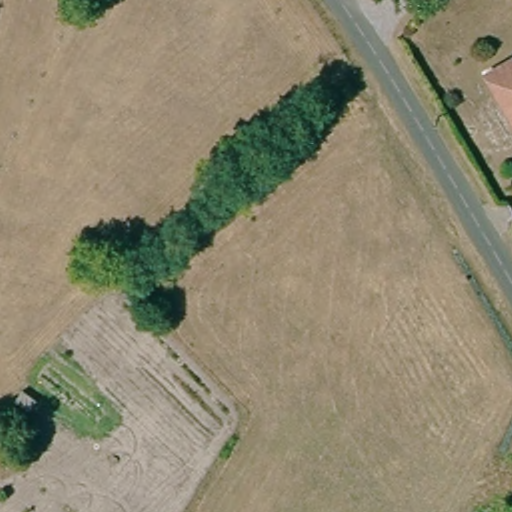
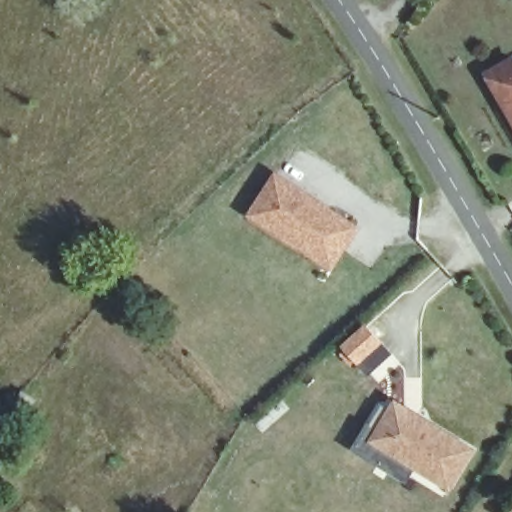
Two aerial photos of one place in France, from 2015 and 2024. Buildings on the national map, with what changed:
unchanged [(511,91),(496,99),(479,70),(506,55),(512,67),(512,94),(511,91)]
unchanged [(511,91),(512,94),(512,127),(496,99),(511,91)]
new [(247,215),(275,173),(360,227),(332,269),(247,215)]
new [(365,322),(393,354),(368,376),(340,344),(365,322)]
new [(358,444),(372,422),(386,399),(395,405),(400,398),(425,414),(476,446),(453,483),(417,461),(409,475),(388,462),(358,444)]
unchanged [(512,502),(512,512),(500,512),(512,502)]

